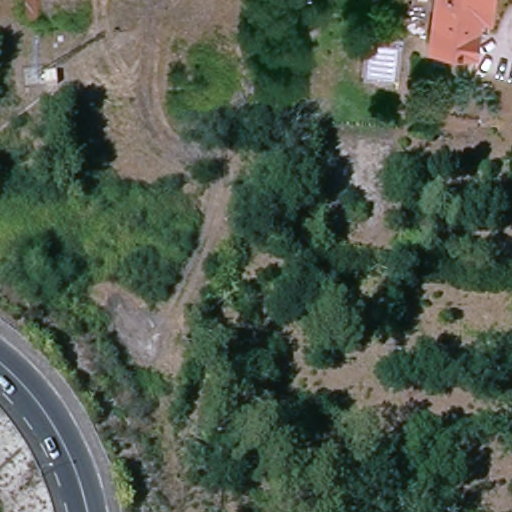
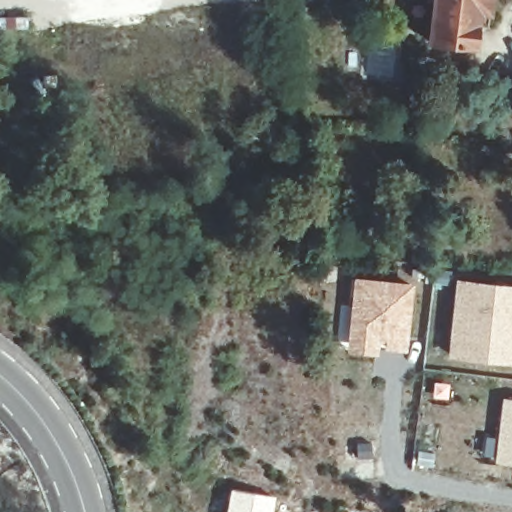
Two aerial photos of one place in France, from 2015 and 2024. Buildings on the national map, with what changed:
unchanged [(474,48),(431,41),(439,0),(491,0),(489,15),(486,30),(478,28),(474,48)]
new [(355,279),(411,285),(404,349),(387,348),(387,339),(377,338),(375,352),(348,349),(350,334),(355,279)]
new [(450,354),(457,281),(512,286),(512,360),(500,359),(450,354)]
new [(512,401),(512,461),(496,460),(503,400),(512,401)]
new [(230,488),(276,496),(274,512),(225,512),(230,488)]

